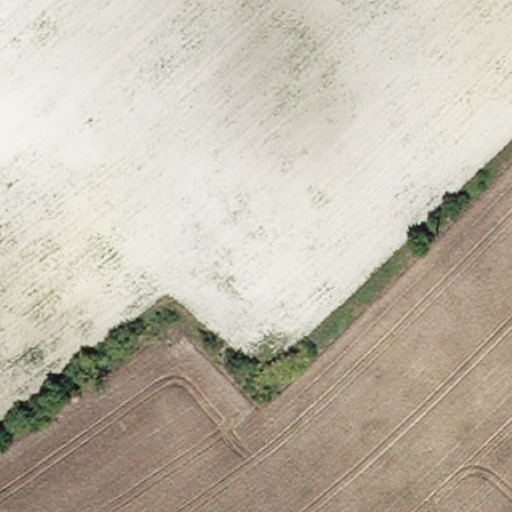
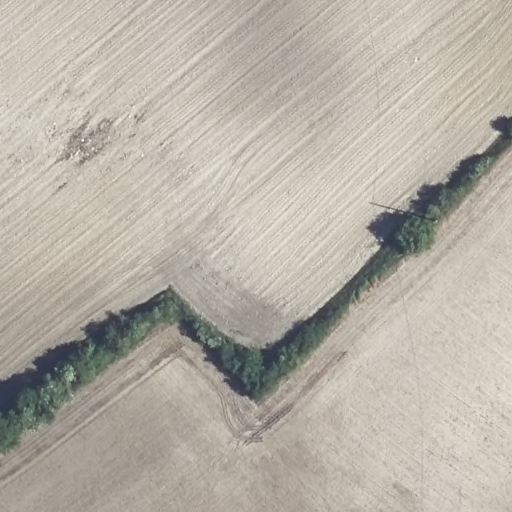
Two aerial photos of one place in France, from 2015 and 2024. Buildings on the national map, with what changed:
[]

